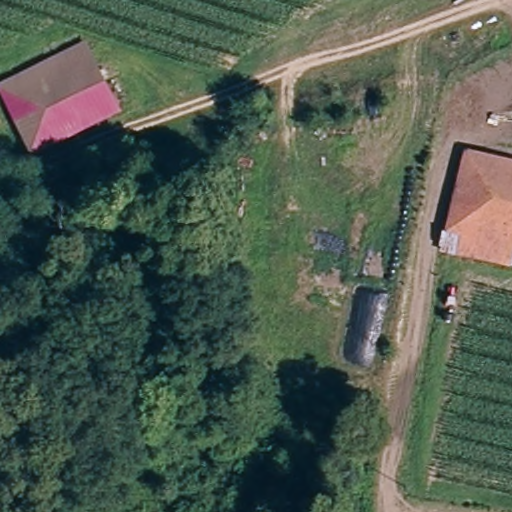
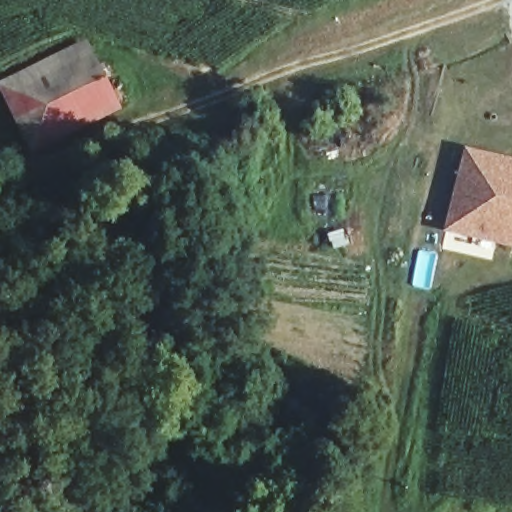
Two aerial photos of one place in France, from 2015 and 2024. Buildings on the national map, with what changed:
unchanged [(0,93),(80,58),(74,42),(84,38),(117,109),(34,152),(0,93)]
unchanged [(512,162),(512,257),(465,244),(470,228),(454,227),(475,154),(512,162)]

